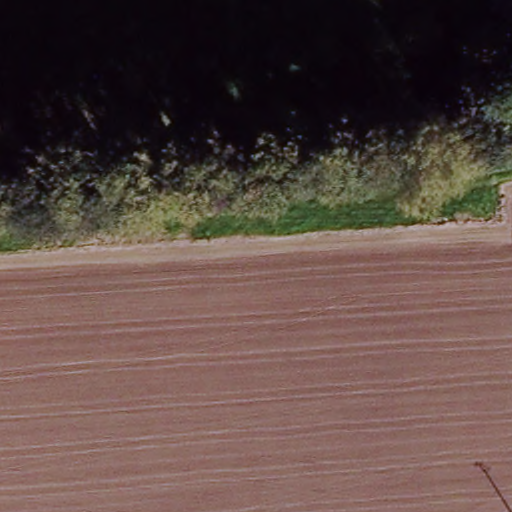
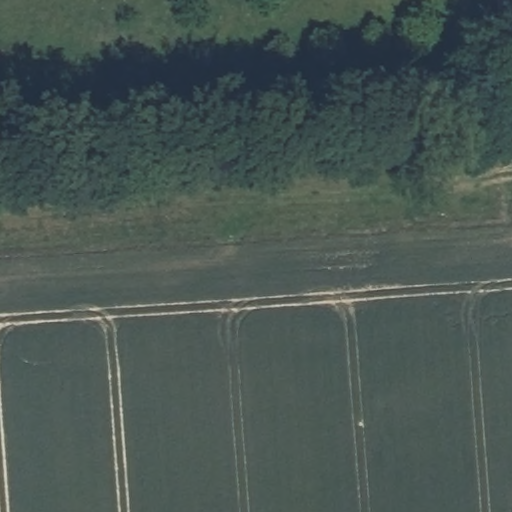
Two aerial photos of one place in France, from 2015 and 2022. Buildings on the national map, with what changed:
unchanged [(496,0),(512,0),(512,19),(496,20),(496,0)]

